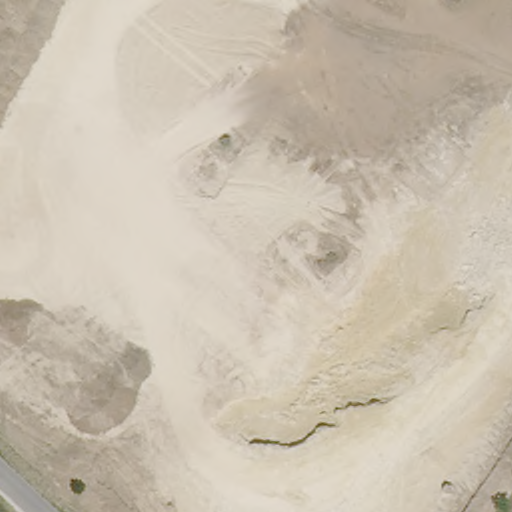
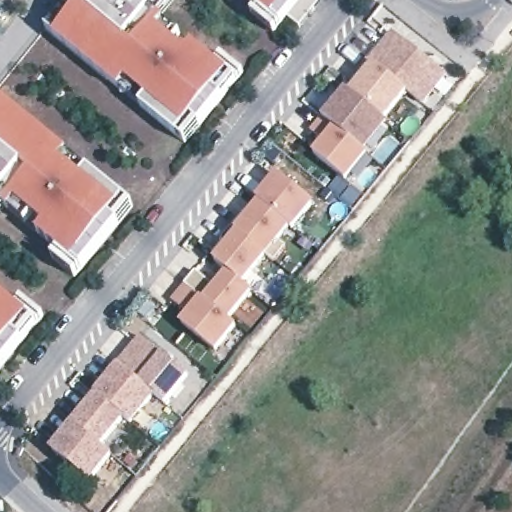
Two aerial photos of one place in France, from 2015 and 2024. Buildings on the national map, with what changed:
new [(67,0),(173,0),(158,18),(214,61),(221,53),(245,72),(186,142),(45,26),(67,0)]
new [(300,26),(288,17),(276,35),(253,16),(260,7),(251,0),(321,0),(300,26)]
new [(393,34),(445,76),(422,104),(410,94),(370,62),(393,34)]
new [(366,154),(367,155),(346,182),(314,155),(324,142),(312,132),(323,119),(322,118),(335,103),(346,89),(351,94),(364,78),(358,73),(369,61),(370,62),(410,94),(386,123),(389,125),(366,154)]
new [(76,278),(53,259),(60,251),(4,205),(0,210),(0,99),(133,205),(76,278)]
new [(277,176),(312,204),(291,228),(259,202),(257,200),(277,176)]
new [(224,277),(228,272),(215,261),(227,246),(220,240),(231,227),(244,212),(249,215),(259,202),(291,228),(279,242),(288,249),(276,264),(265,255),(242,284),(251,291),(228,320),(184,284),(195,271),(211,284),(219,273),(224,277)]
new [(236,328),(215,354),(179,324),(189,312),(171,301),(184,284),(228,320),(236,328)]
new [(21,297),(44,315),(0,367),(0,292),(16,304),(21,297)]
new [(140,336),(163,355),(188,376),(167,403),(153,394),(120,367),(140,336)]
new [(120,367),(154,395),(131,424),(124,419),(100,447),(111,456),(91,481),(53,450),(120,367)]

